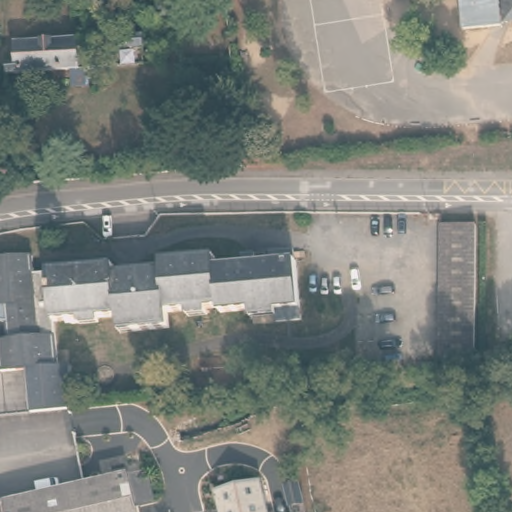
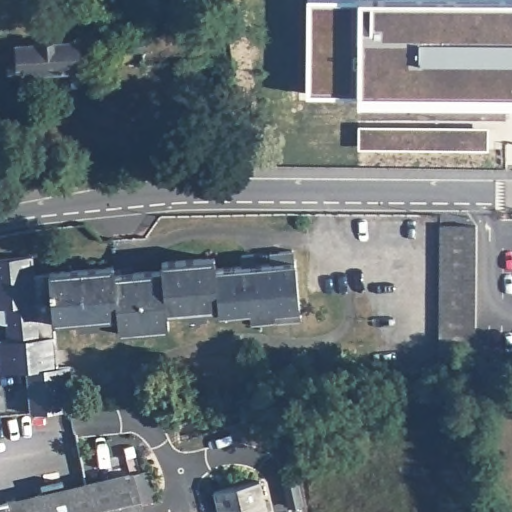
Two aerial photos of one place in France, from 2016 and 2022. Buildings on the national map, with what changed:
new [(357,102),(357,0),(512,0),(512,105),(357,102)]
demolished [(502,30),(462,33),(460,0),(500,0),(502,30)]
demolished [(510,14),(509,4),(508,0),(512,0),(512,14),(510,14)]
unchanged [(9,62),(19,61),(18,40),(79,35),(79,53),(85,53),(87,65),(9,71),(9,62)]
unchanged [(145,50),(130,51),(130,37),(144,36),(145,50)]
new [(487,151),(356,151),(355,126),(488,128),(487,151)]
unchanged [(476,258),(475,360),(440,361),(442,261),(441,226),(477,226),(476,258)]
unchanged [(0,341),(8,341),(7,323),(0,321),(0,259),(32,256),(35,275),(50,274),(51,272),(114,266),(115,274),(163,271),(164,262),(215,257),(215,268),(244,266),(243,255),(254,255),(255,265),(271,264),(270,252),(280,251),(293,251),(294,261),(296,262),(301,321),(278,323),(276,318),(253,320),(251,314),(251,311),(221,314),(220,309),(207,310),(209,316),(189,318),(187,312),(167,313),(170,329),(134,332),(120,334),(120,328),(119,317),(54,323),(59,367),(70,367),(75,409),(31,414),(28,370),(0,372),(0,366),(0,341)]
unchanged [(129,470),(147,466),(154,497),(136,502),(139,512),(0,512),(0,499),(39,491),(129,470)]
unchanged [(260,482),(266,512),(220,512),(215,492),(260,482)]

